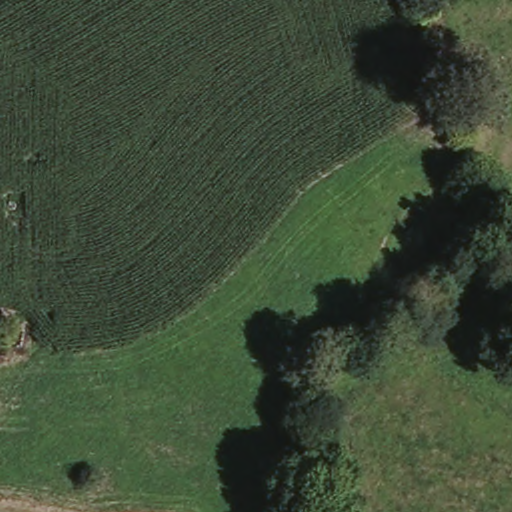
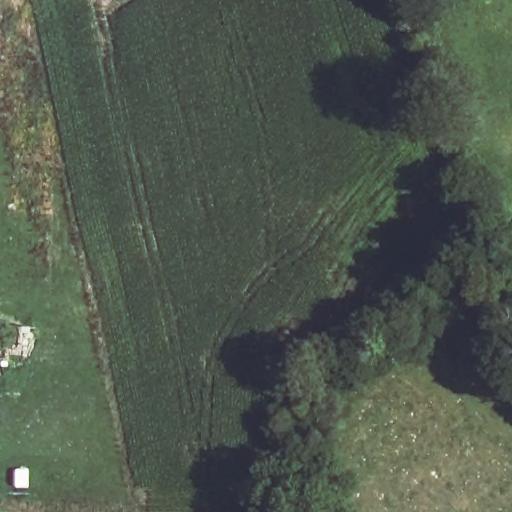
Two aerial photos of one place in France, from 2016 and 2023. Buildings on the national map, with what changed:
[]

